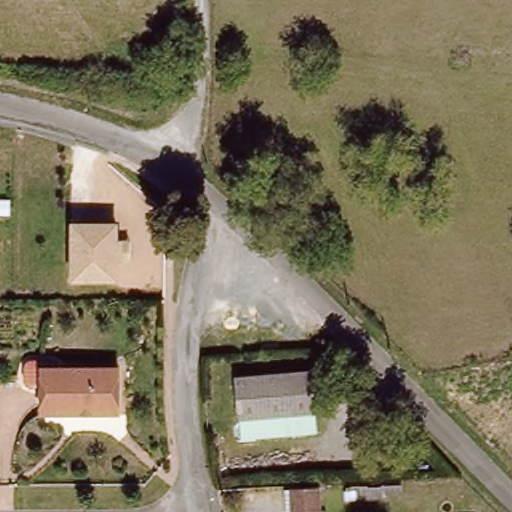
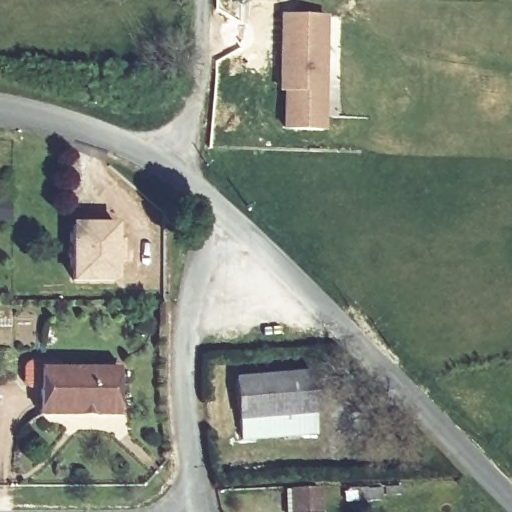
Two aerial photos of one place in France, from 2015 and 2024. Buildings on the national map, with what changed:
new [(285,92),(280,91),(282,15),(327,16),(323,131),(284,130),(285,92)]
unchanged [(119,220),(120,240),(131,240),(132,263),(120,263),(121,282),(71,283),(71,221),(119,220)]
unchanged [(120,413),(42,414),(42,367),(120,366),(120,413)]
unchanged [(316,378),(321,433),(245,441),(240,385),(316,378)]
unchanged [(324,512),(282,512),(280,498),(322,493),(324,512)]

